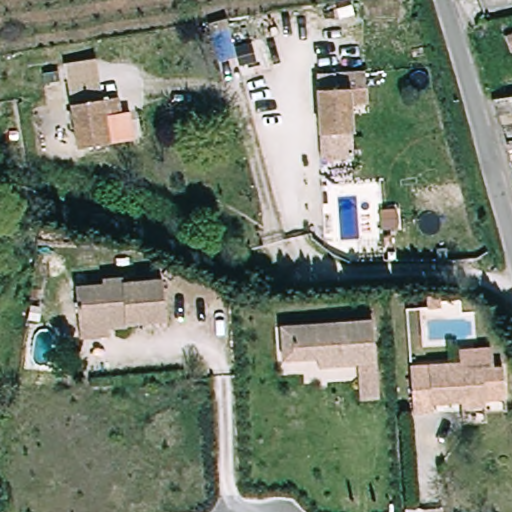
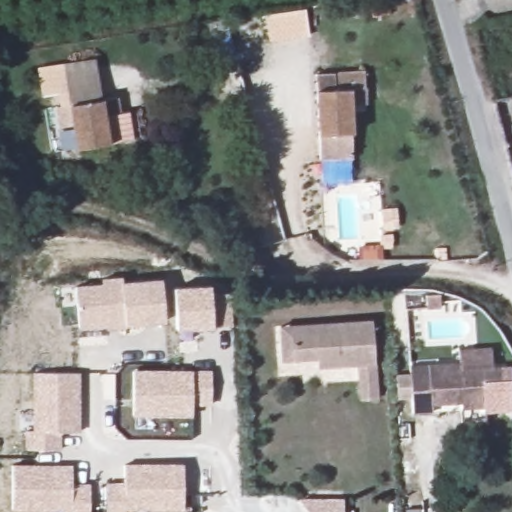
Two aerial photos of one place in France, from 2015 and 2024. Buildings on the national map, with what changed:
unchanged [(98,69),(104,106),(118,103),(121,121),(131,119),(136,146),(80,155),(72,111),(66,74),(98,69)]
unchanged [(335,73),(367,72),(369,105),(355,106),(356,134),(322,135),(319,91),(336,91),(335,73)]
unchanged [(84,332),(74,292),(103,287),(102,279),(121,275),(125,282),(161,274),(170,315),(132,323),(133,329),(114,332),(115,339),(87,345),(84,332)]
new [(178,330),(176,287),(211,285),(211,293),(231,292),(232,323),(213,324),(213,328),(178,330)]
unchanged [(383,401),(364,402),(361,365),(329,367),(328,358),(297,361),(287,361),(285,327),(294,327),(377,321),(383,401)]
unchanged [(459,364),(461,370),(503,368),(505,400),(484,401),(485,407),(465,408),(461,403),(434,405),(433,413),(413,413),(411,366),(459,364)]
new [(193,417),(134,417),(134,370),(193,370),(212,370),(211,407),(193,407),(193,417)]
new [(61,432),(61,450),(27,451),(26,431),(34,432),(34,372),(81,372),(81,432),(61,432)]
new [(126,511),(126,512),(107,512),(107,482),(126,482),(126,463),(184,463),(184,511),(126,511)]
new [(14,465),(72,465),(72,483),(91,483),(90,512),(72,512),(14,512),(14,465)]
new [(345,499),(344,511),(354,512),(309,512),(302,498),(345,499)]

